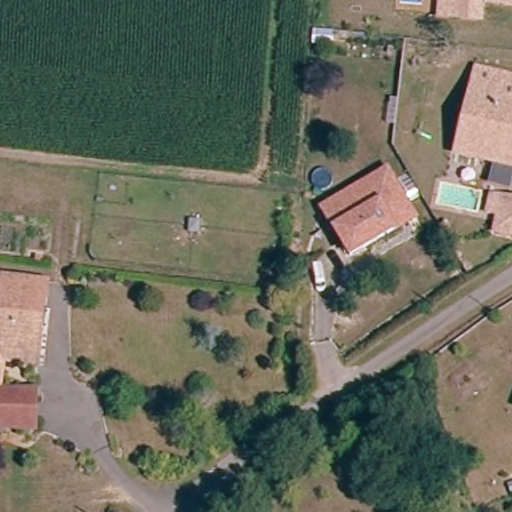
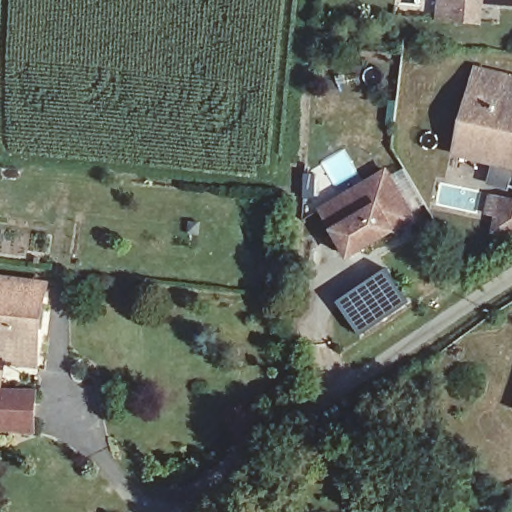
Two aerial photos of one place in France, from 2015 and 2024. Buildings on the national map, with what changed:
unchanged [(456,5),(456,0),(512,0),(512,9),(480,6),(479,25),(455,23),(456,5)]
unchanged [(455,160),(475,77),(512,85),(512,171),(455,160)]
unchanged [(396,235),(352,261),(333,231),(318,208),(386,169),(419,221),(396,235)]
unchanged [(485,237),(490,208),(492,200),(505,203),(512,204),(512,243),(485,237)]
new [(338,303),(388,269),(410,303),(361,335),(338,303)]
unchanged [(46,282),(38,352),(0,351),(0,280),(46,282)]
unchanged [(0,387),(36,391),(31,430),(10,430),(0,430),(0,387)]

